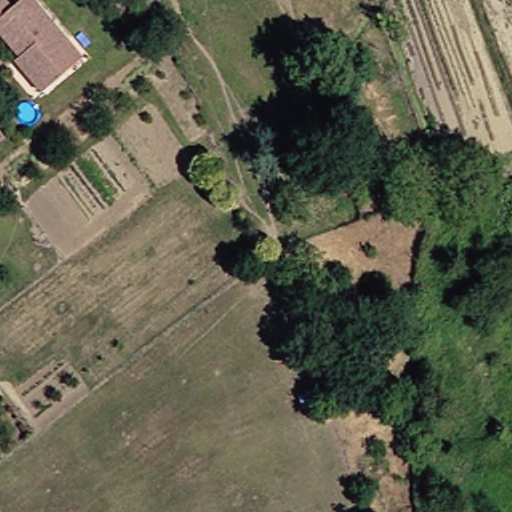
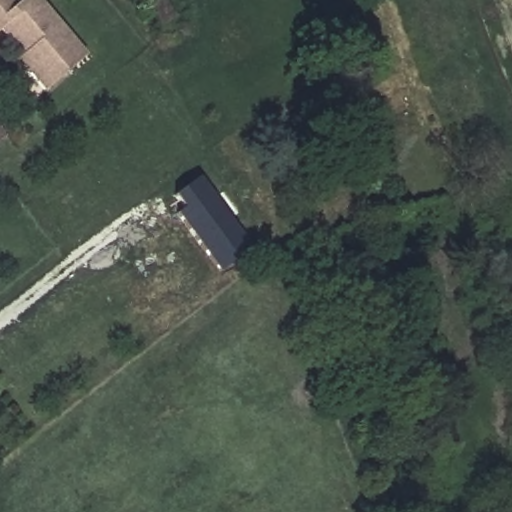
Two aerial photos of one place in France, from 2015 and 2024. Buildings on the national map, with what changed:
unchanged [(2,30),(0,32),(0,0),(11,0),(16,7),(25,0),(39,0),(71,41),(86,59),(69,73),(44,93),(23,67),(18,60),(23,56),(2,30)]
new [(218,273),(175,214),(183,209),(173,196),(197,179),(248,251),(218,273)]

